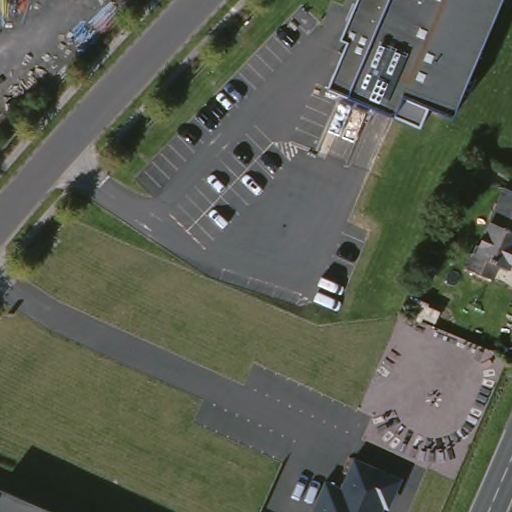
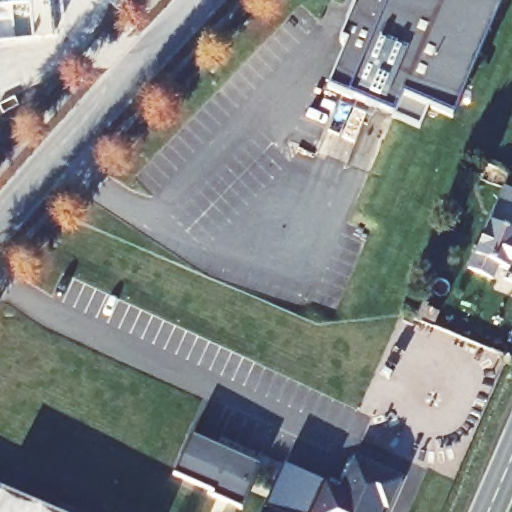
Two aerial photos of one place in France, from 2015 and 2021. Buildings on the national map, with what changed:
unchanged [(344,38),(361,0),(507,0),(458,116),(408,95),(399,116),(332,87),(352,41),(344,38)]
unchanged [(512,192),(512,269),(503,266),(497,280),(472,270),(478,256),(480,256),(508,190),(512,192)]
new [(212,494),(214,491),(175,475),(193,435),(259,465),(240,507),(212,494)]
unchanged [(409,474),(394,506),(389,504),(386,512),(318,512),(334,476),(344,480),(353,457),(409,474)]
new [(318,512),(295,512),(273,502),(292,459),(334,476),(318,512)]
unchanged [(0,492),(1,490),(53,512),(0,512),(0,492)]

